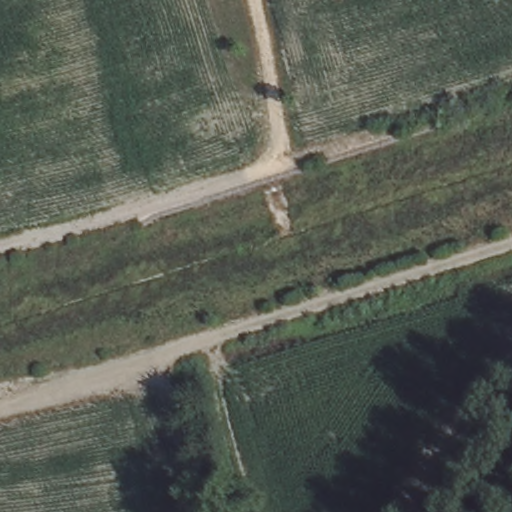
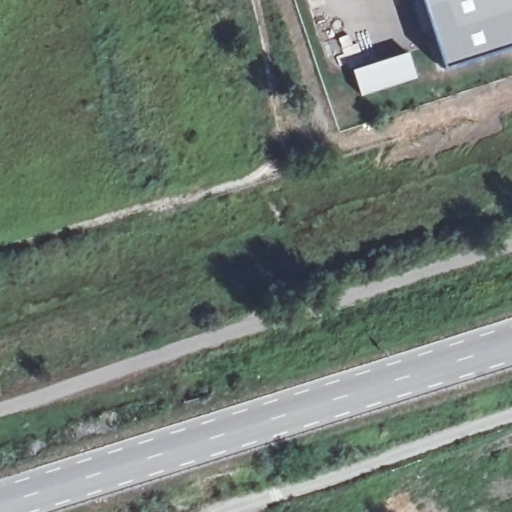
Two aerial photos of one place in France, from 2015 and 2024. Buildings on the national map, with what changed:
new [(439,65),(419,0),(512,0),(512,41),(439,65)]
new [(407,52),(415,77),(359,95),(351,70),(407,52)]

